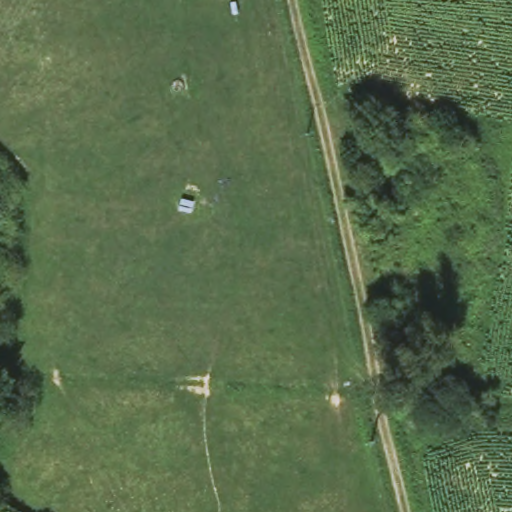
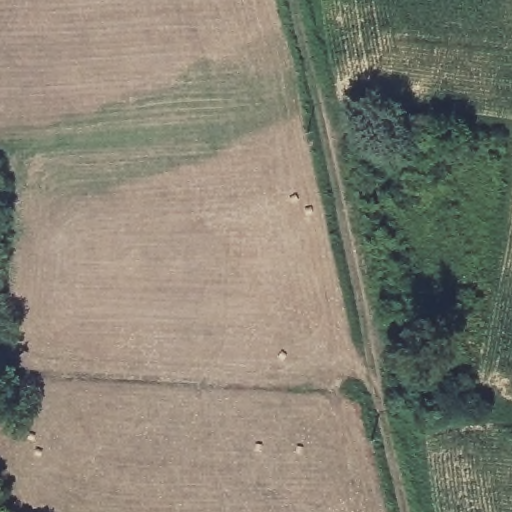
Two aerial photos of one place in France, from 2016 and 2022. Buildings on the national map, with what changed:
[]

